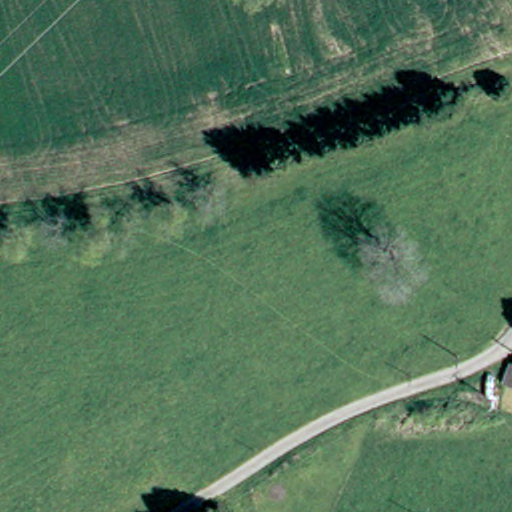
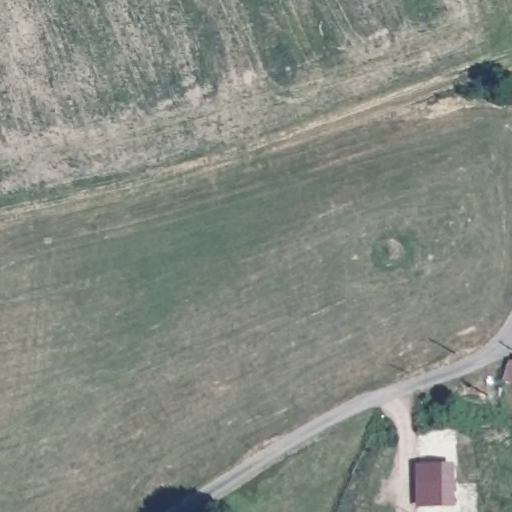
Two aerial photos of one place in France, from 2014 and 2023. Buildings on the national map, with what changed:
new [(455,461),(455,507),(416,508),(415,463),(455,461)]

